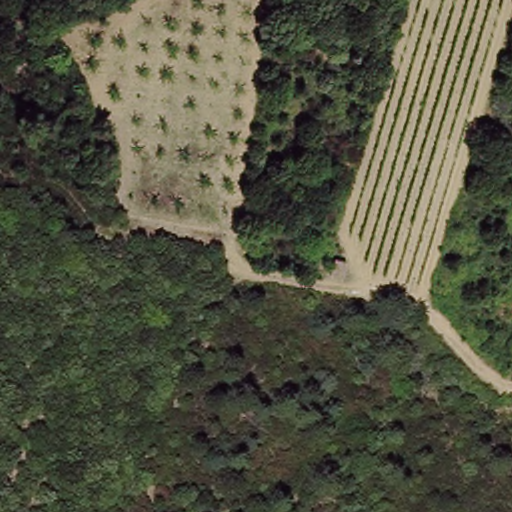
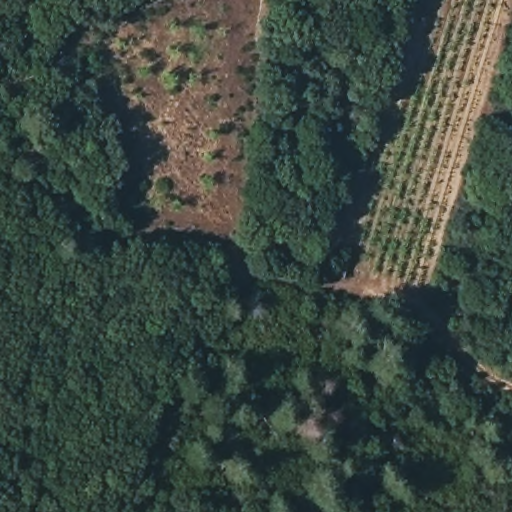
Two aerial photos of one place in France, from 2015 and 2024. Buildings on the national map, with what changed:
unchanged [(336,256),(356,257),(350,278),(330,275),(336,256)]

